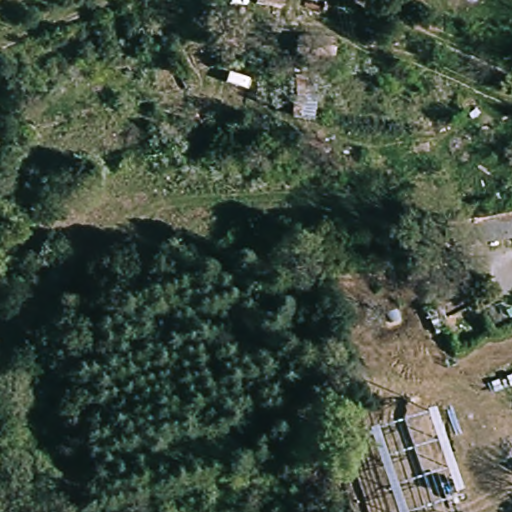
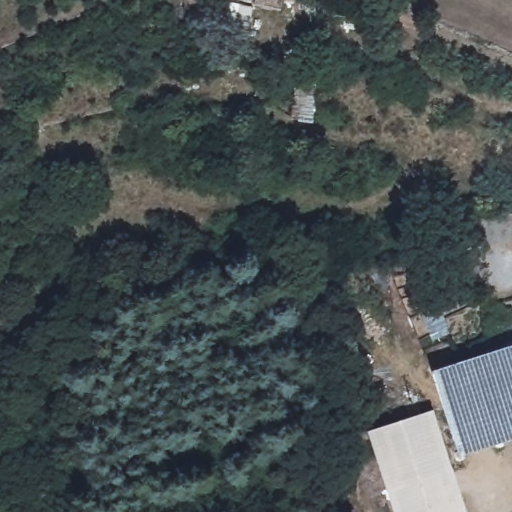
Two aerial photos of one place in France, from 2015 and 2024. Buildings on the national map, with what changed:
unchanged [(258,0),(280,0),(275,9),(258,0)]
new [(512,213),(512,227),(491,220),(491,214),(512,213)]
new [(431,370),(512,344),(512,437),(460,453),(431,370)]
new [(367,430),(434,408),(466,512),(394,512),(367,430)]

